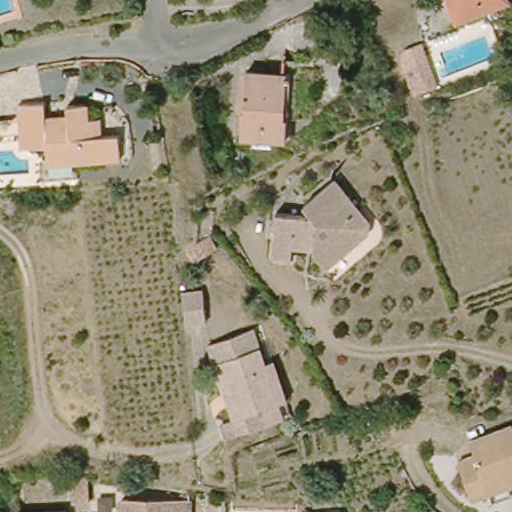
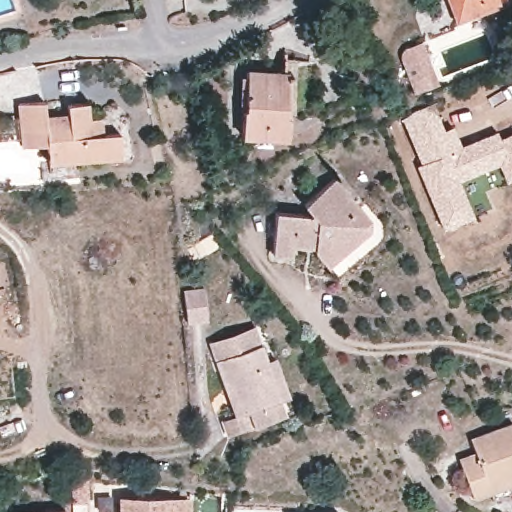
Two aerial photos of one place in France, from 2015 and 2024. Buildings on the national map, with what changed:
unchanged [(512,2),(460,22),(451,0),(512,0),(512,2)]
new [(414,94),(401,59),(404,50),(422,42),(439,85),(414,94)]
unchanged [(289,74),(288,117),(291,116),(291,137),(243,135),(243,108),(247,108),(248,72),(289,74)]
new [(444,129),(453,126),(461,143),(497,130),(499,136),(512,131),(512,177),(504,180),(497,164),(459,180),(474,216),(442,229),(414,164),(419,163),(400,117),(434,102),(444,129)]
unchanged [(76,110),(93,110),(94,123),(104,123),(105,138),(124,139),(126,162),(50,166),(47,144),(21,145),(18,107),(48,105),(49,126),(75,124),(76,110)]
unchanged [(327,178),(366,214),(366,226),(330,264),(318,253),(318,246),(296,248),(296,260),(280,260),(279,219),(308,219),(311,214),(301,205),(327,178)]
unchanged [(223,235),(228,251),(206,261),(201,263),(194,246),(206,241),(221,235),(223,235)]
unchanged [(203,292),(208,323),(186,327),(186,324),(182,306),(181,298),(203,292)]
unchanged [(210,344),(235,337),(254,330),(259,345),(264,359),(273,356),(286,395),(277,399),(271,400),(276,416),(274,417),(238,428),(231,411),(225,391),(215,358),(210,344)]
unchanged [(478,499),(464,461),(479,455),(474,441),(512,426),(512,487),(496,492),(478,499)]
unchanged [(74,507),(72,477),(73,477),(88,478),(91,506),(74,507)]
unchanged [(126,512),(126,499),(193,501),(193,512),(126,512)]

